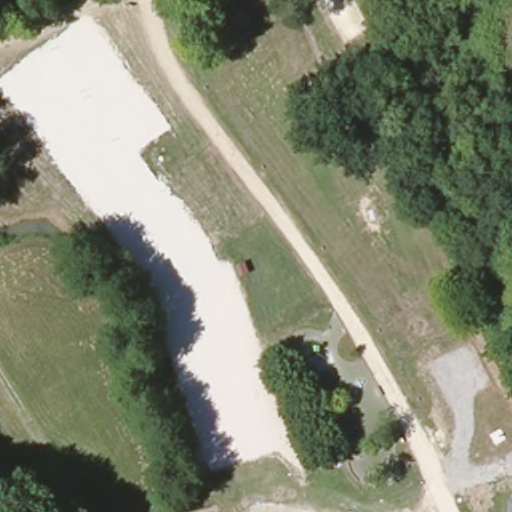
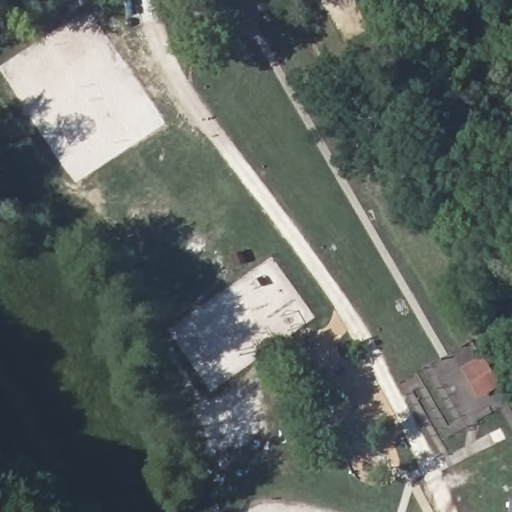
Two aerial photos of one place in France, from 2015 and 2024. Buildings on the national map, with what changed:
unchanged [(238,3),(259,39),(234,55),(213,18),(238,3)]
unchanged [(510,497),(512,495),(512,512),(510,511),(510,497)]

